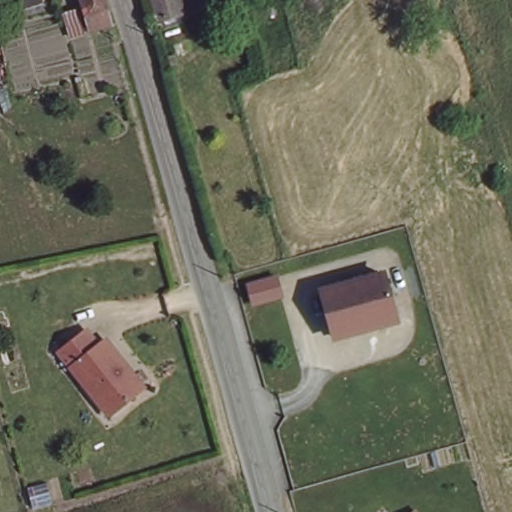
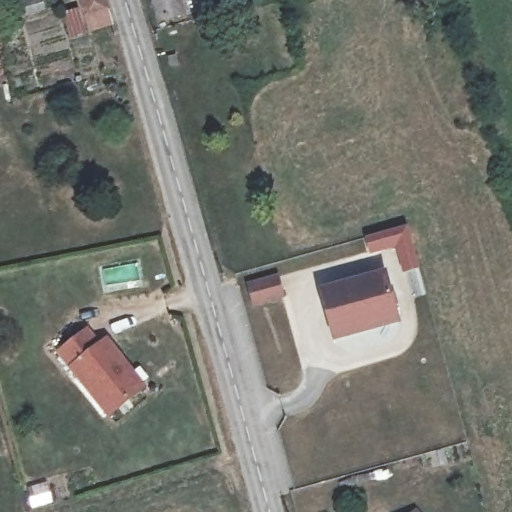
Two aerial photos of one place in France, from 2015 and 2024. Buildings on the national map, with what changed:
unchanged [(80,0),(104,0),(112,27),(92,32),(80,0)]
unchanged [(157,25),(150,0),(179,0),(183,17),(157,25)]
new [(369,252),(364,237),(405,225),(415,267),(401,271),(394,244),(369,252)]
unchanged [(385,272),(397,321),(333,340),(319,291),(385,272)]
unchanged [(276,277),(282,296),(252,305),(246,287),(276,277)]
unchanged [(87,331),(100,346),(107,341),(127,364),(123,367),(142,391),(111,416),(61,352),(87,331)]

